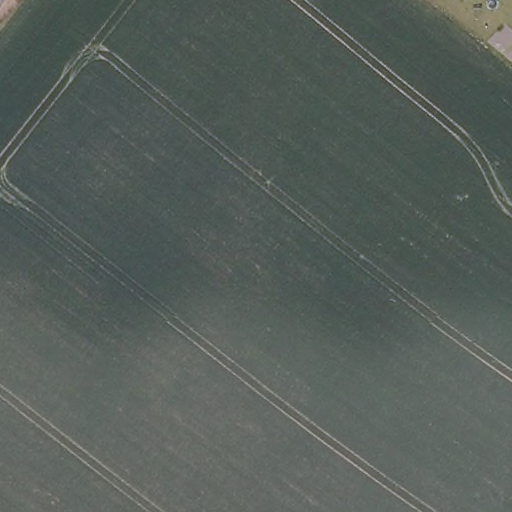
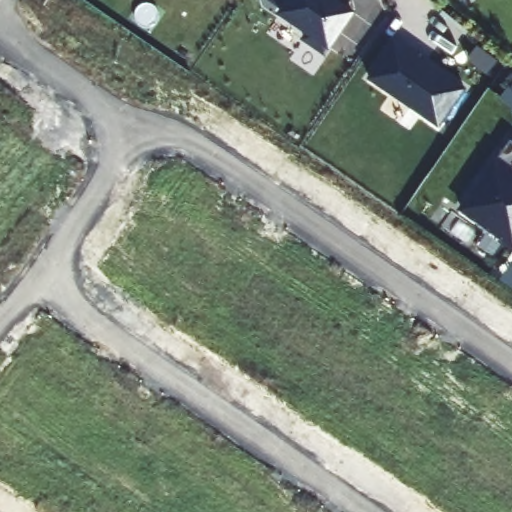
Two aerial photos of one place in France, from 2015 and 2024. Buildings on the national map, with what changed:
new [(323,52),(303,38),(308,31),(280,12),(283,7),(273,0),(336,0),(352,11),(323,52)]
new [(394,40),(462,90),(437,126),(368,77),(394,40)]
new [(507,141),(512,145),(512,245),(460,209),(507,141)]

